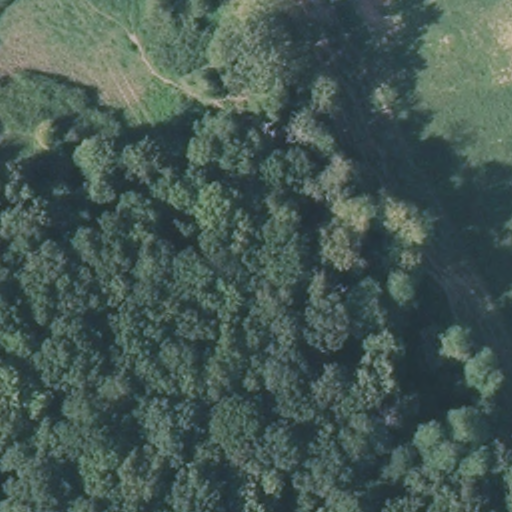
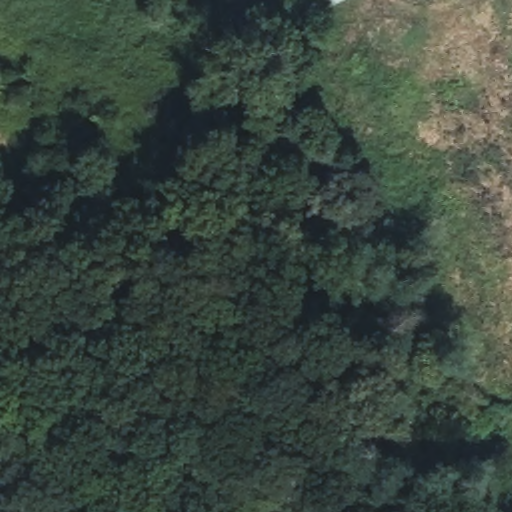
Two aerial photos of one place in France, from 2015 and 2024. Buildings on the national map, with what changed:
unchanged [(328,1),(328,0),(331,0),(328,1)]

